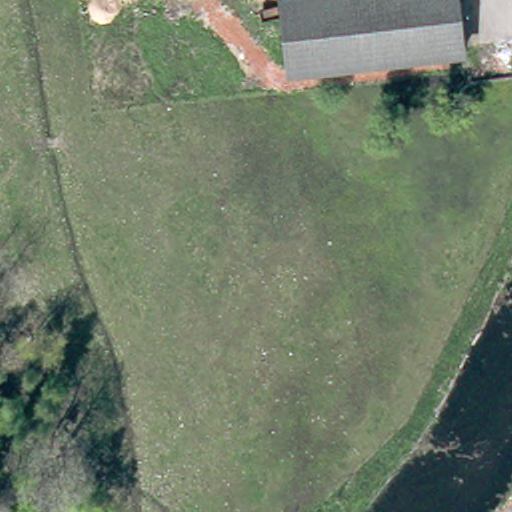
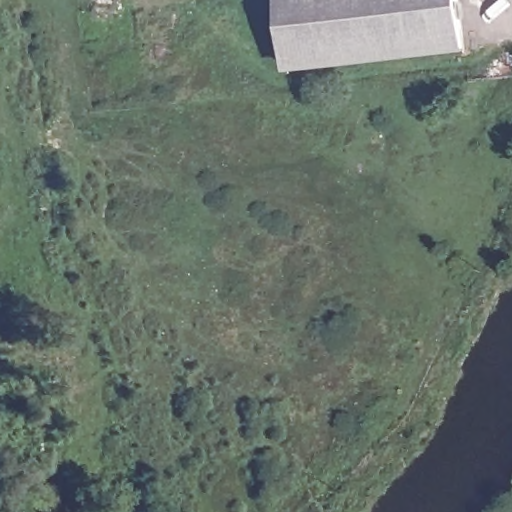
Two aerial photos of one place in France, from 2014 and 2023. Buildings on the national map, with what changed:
unchanged [(289,55),(283,0),(460,0),(464,37),(289,55)]

